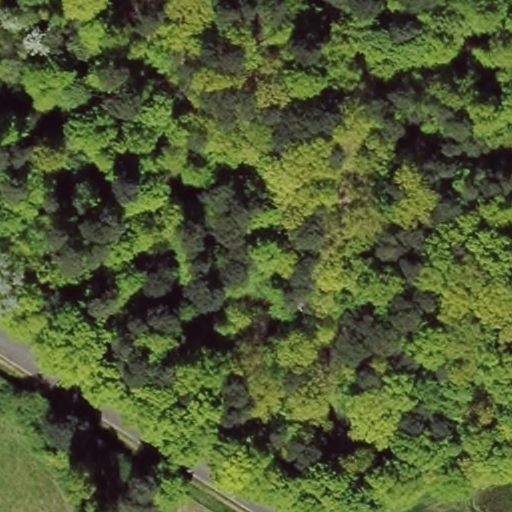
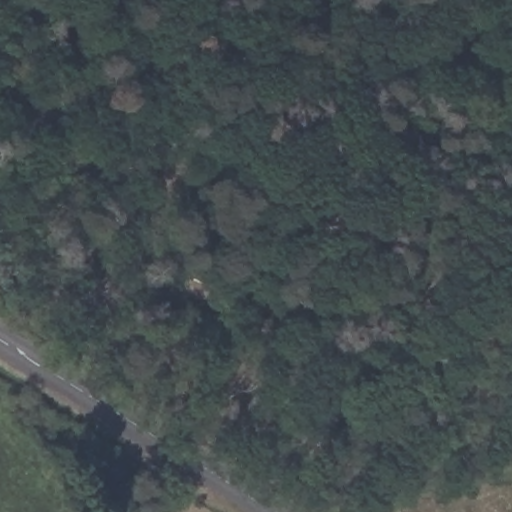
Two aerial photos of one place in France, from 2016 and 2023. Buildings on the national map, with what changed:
[]

